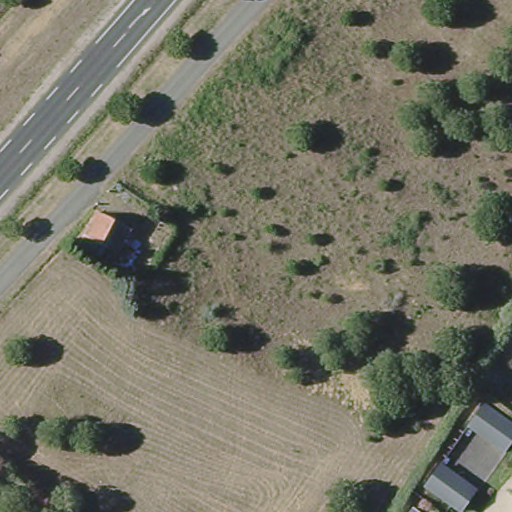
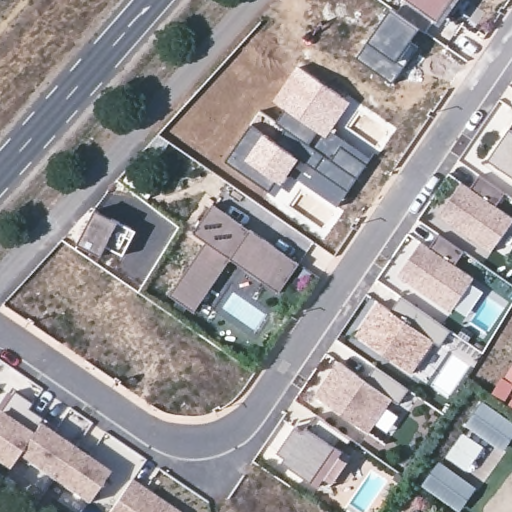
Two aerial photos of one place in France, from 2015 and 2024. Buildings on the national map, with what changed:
new [(434,21),(425,32),(398,13),(408,0),(459,0),(441,25),(434,21)]
new [(356,57),(367,43),(391,9),(398,13),(420,28),(411,42),(417,45),(394,82),(356,57)]
new [(273,101),(298,66),(350,102),(332,129),(325,138),(321,136),(312,150),(276,122),(285,109),(273,101)]
new [(246,161),(282,185),(276,196),(226,162),(251,124),(263,133),(246,161)]
new [(512,129),(512,176),(490,161),(512,129)]
new [(290,173),(300,158),(278,142),(286,130),(312,150),(321,136),(325,138),(330,131),(370,158),(337,206),(290,173)]
new [(263,133),(300,158),(282,185),(246,161),(263,133)]
new [(470,189),(480,175),(505,193),(496,206),(512,217),(512,223),(492,252),(439,215),(461,182),(470,189)]
unchanged [(119,247),(108,241),(102,251),(79,238),(97,204),(132,223),(119,247)]
new [(207,243),(194,234),(213,204),(302,264),(282,293),(232,259),(196,313),(171,296),(207,243)]
new [(420,243),(428,248),(438,234),(465,252),(454,266),(473,279),(450,312),(397,275),(420,243)]
new [(378,303),(387,308),(397,294),(446,328),(436,343),(431,339),(408,371),(356,335),(378,303)]
new [(340,363),(366,381),(375,367),(410,391),(400,405),(395,400),(370,435),(315,398),(340,363)]
new [(13,393),(32,406),(28,411),(41,421),(18,455),(8,470),(0,465),(0,412),(13,393)]
new [(328,488),(322,483),(318,488),(310,483),(282,463),(285,458),(277,453),(295,427),(303,432),(306,427),(308,428),(316,415),(351,440),(347,445),(340,440),(335,447),(350,457),(328,488)]
new [(41,421),(55,430),(52,435),(73,449),(53,479),(18,455),(41,421)]
new [(73,449),(76,444),(90,454),(87,459),(108,474),(88,503),(53,479),(73,449)]
new [(130,481),(175,512),(109,512),(130,481)]

